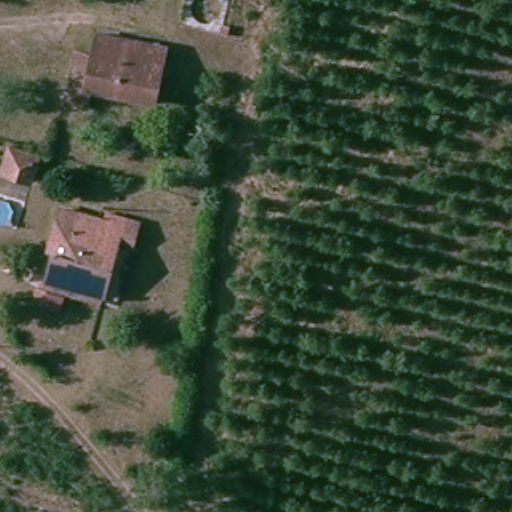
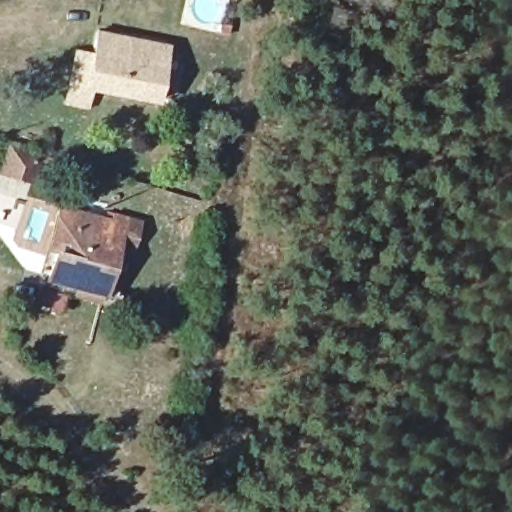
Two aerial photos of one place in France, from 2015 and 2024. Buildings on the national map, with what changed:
unchanged [(71,85),(81,54),(94,58),(101,34),(164,54),(146,108),(71,85)]
unchanged [(21,143),(44,150),(35,182),(11,173),(21,143)]
unchanged [(58,216),(96,232),(102,215),(146,232),(128,276),(100,265),(83,308),(30,285),(58,216)]

